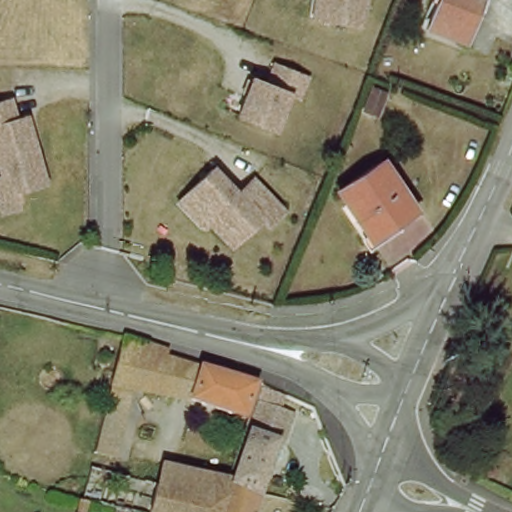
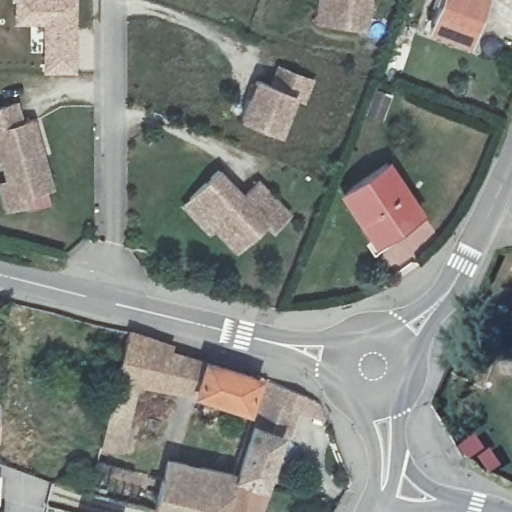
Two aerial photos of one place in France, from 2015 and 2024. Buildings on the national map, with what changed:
new [(13,0),(79,0),(78,73),(43,74),(41,25),(13,25),(13,0)]
unchanged [(317,0),(366,0),(362,28),(324,22),(314,21),(317,0)]
unchanged [(467,44),(429,29),(440,0),(484,0),(467,44)]
unchanged [(276,68),(310,82),(301,102),(292,99),(278,135),(240,119),(254,82),(269,87),(276,68)]
unchanged [(367,85),(381,91),(366,130),(351,125),(367,85)]
unchanged [(0,184),(10,182),(5,165),(3,166),(0,157),(0,108),(18,104),(23,124),(34,121),(53,188),(24,196),(26,206),(8,211),(0,184)]
unchanged [(428,216),(382,245),(349,194),(394,164),(428,216)]
unchanged [(185,206),(193,199),(220,172),(245,197),(260,182),(291,215),(276,229),(269,222),(240,251),(218,227),(212,232),(185,206)]
unchanged [(168,350),(156,385),(148,383),(141,415),(113,408),(131,332),(176,344),(174,351),(168,350)]
unchanged [(210,362),(198,392),(156,385),(168,350),(174,351),(210,362)]
unchanged [(261,377),(269,380),(258,415),(198,392),(210,362),(261,377)]
unchanged [(240,478),(266,405),(281,411),(304,417),(302,440),(285,436),(267,486),(240,478)]
unchanged [(141,415),(131,453),(103,446),(113,408),(141,415)]
unchanged [(0,410),(5,411),(5,446),(0,446),(0,410)]
unchanged [(458,469),(448,452),(454,447),(465,465),(458,469)]
unchanged [(229,512),(165,512),(153,509),(168,458),(240,478),(229,512)]
new [(1,508),(6,508),(6,512),(0,512),(0,474),(3,475),(1,508)]
unchanged [(267,486),(258,512),(229,512),(240,478),(267,486)]
unchanged [(325,503),(334,509),(331,512),(315,512),(319,506),(325,503)]

